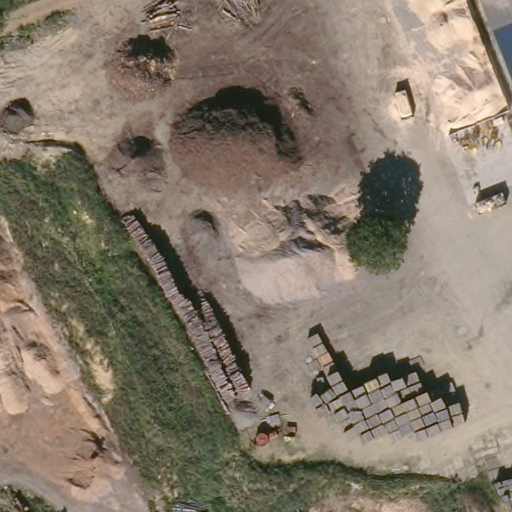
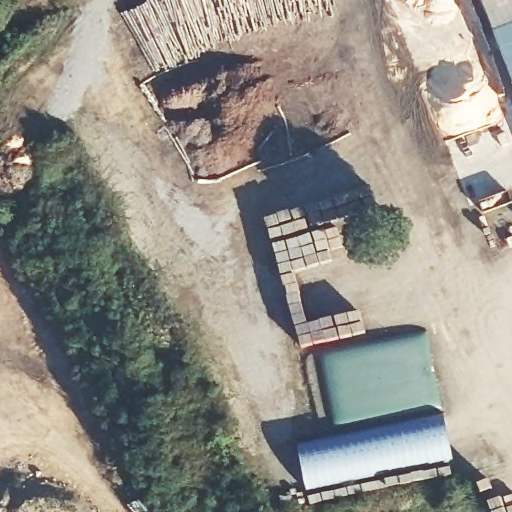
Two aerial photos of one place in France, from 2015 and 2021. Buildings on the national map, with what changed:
unchanged [(512,0),(512,73),(484,0),(512,0)]
new [(453,461),(306,494),(296,443),(443,413),(453,461)]

